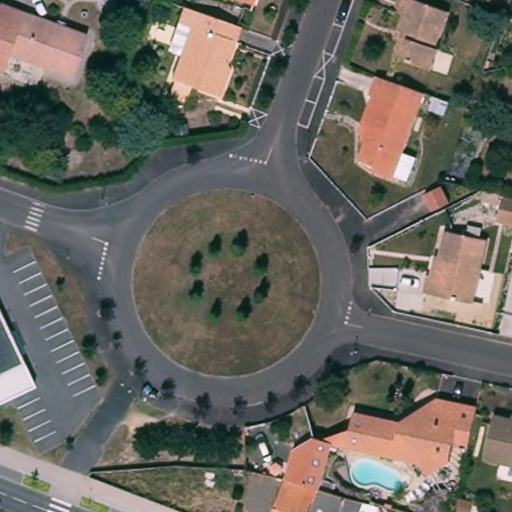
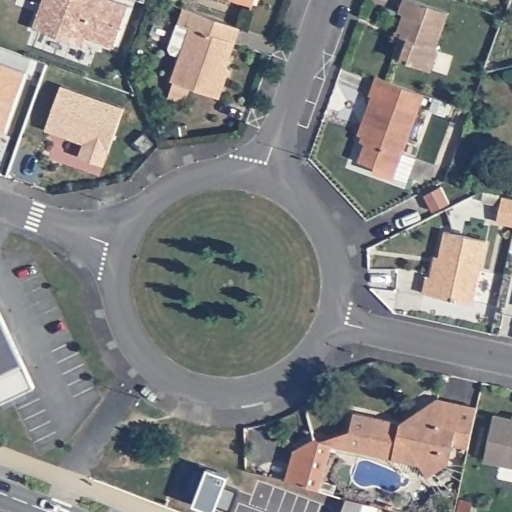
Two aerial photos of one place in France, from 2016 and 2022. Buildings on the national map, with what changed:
new [(115,47),(85,36),(83,44),(33,25),(42,0),(119,0),(129,4),(115,47)]
unchanged [(249,6),(234,0),(251,0),(249,6)]
unchanged [(399,30),(404,14),(400,12),(404,0),(415,0),(450,13),(437,49),(439,50),(432,69),(395,56),(400,41),(395,39),(399,30)]
demolished [(71,78),(9,56),(3,74),(0,73),(0,5),(85,35),(71,78)]
unchanged [(237,29),(232,42),(223,68),(226,71),(216,98),(187,88),(182,102),(166,97),(171,82),(169,82),(171,77),(169,78),(177,57),(169,54),(166,49),(175,25),(181,9),(219,22),(237,29)]
unchanged [(404,180),(390,176),(389,179),(368,171),(370,165),(354,158),(361,142),(356,140),(359,134),(353,132),(367,96),(365,94),(371,77),(420,94),(398,152),(412,157),(404,180)]
new [(61,91),(126,114),(106,170),(81,161),(85,148),(59,139),(46,134),(48,129),(61,91)]
unchanged [(443,192),(450,207),(434,216),(426,199),(443,192)]
unchanged [(502,225),(508,200),(512,200),(512,227),(502,225)]
unchanged [(486,243),(473,308),(423,297),(427,280),(435,282),(445,234),(486,243)]
unchanged [(0,373),(0,318),(22,362),(0,373)]
unchanged [(470,449),(455,446),(444,451),(452,464),(429,477),(421,462),(347,447),(354,410),(401,420),(419,411),(439,399),(480,408),(479,413),(470,449)]
unchanged [(490,462),(500,417),(508,419),(509,414),(512,414),(512,466),(490,462)]
unchanged [(291,452),(313,440),(332,445),(319,491),(284,481),(283,481),(291,452)]
unchanged [(319,491),(326,493),(347,499),(342,512),(271,512),(284,481),(319,491)]
unchanged [(379,508),(377,512),(342,512),(347,499),(379,508)]

